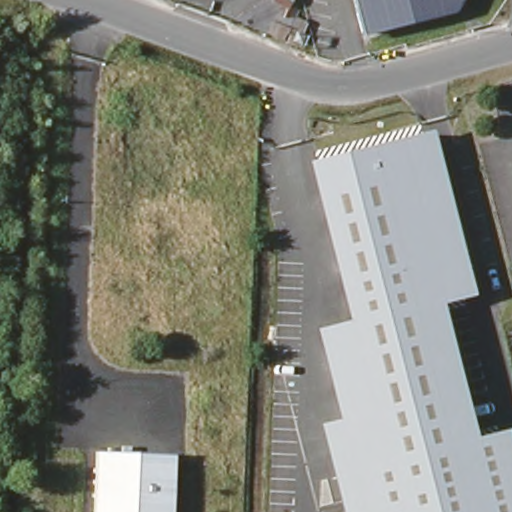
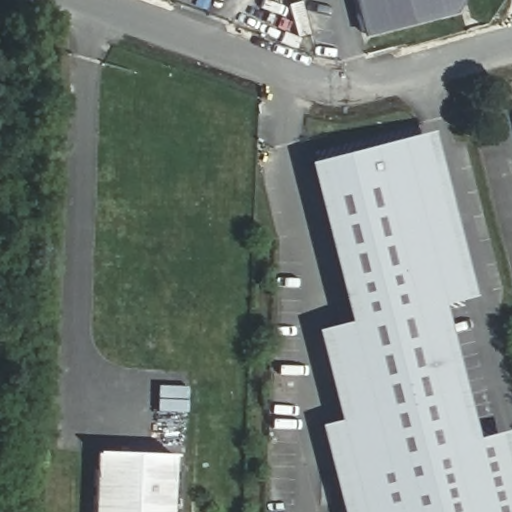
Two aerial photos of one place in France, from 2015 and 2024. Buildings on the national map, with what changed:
unchanged [(443,8),(363,30),(356,0),(448,0),(443,8)]
unchanged [(344,512),(321,423),(341,419),(317,328),(350,321),(308,161),(434,130),(477,296),(443,304),(478,437),(512,428),(512,430),(512,512),(344,512)]
unchanged [(175,512),(98,512),(99,465),(176,468),(175,512)]

